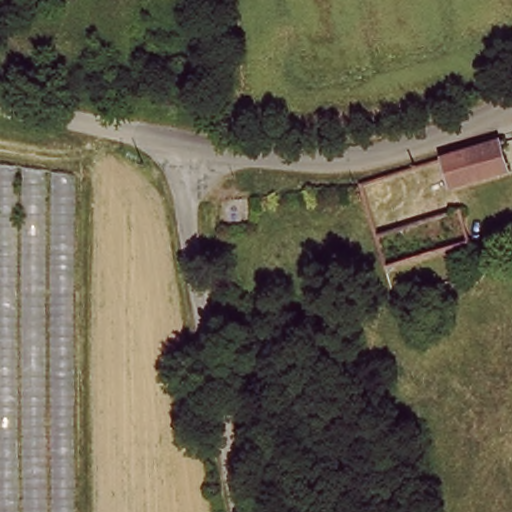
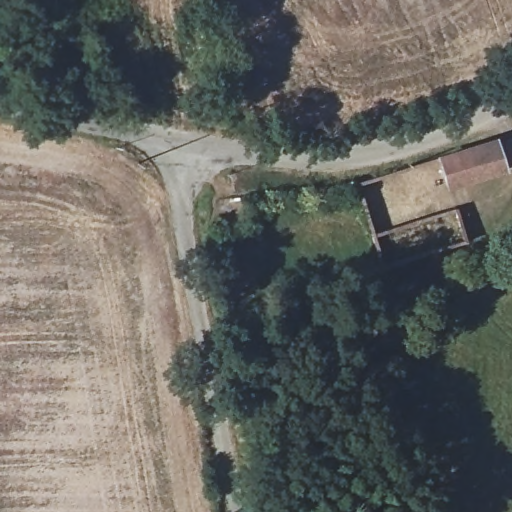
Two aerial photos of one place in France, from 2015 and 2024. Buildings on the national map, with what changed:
unchanged [(498,133),(509,170),(448,190),(438,154),(498,133)]
demolished [(68,512),(0,512),(0,163),(67,173),(68,512)]

